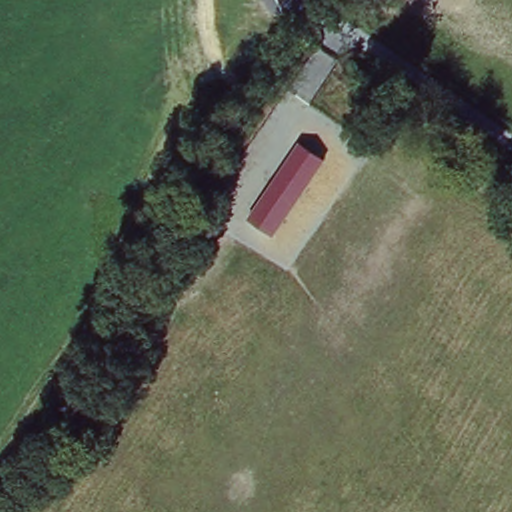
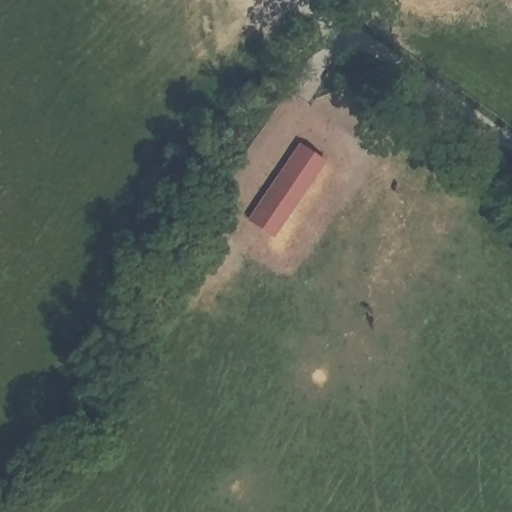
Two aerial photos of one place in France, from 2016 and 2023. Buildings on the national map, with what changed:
unchanged [(273,235),(249,219),(300,142),(324,160),(273,235)]

